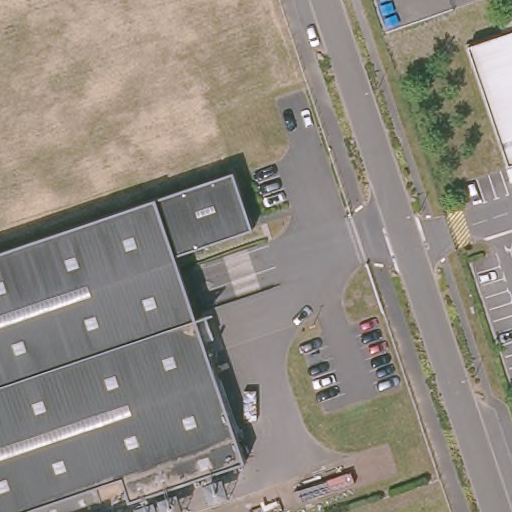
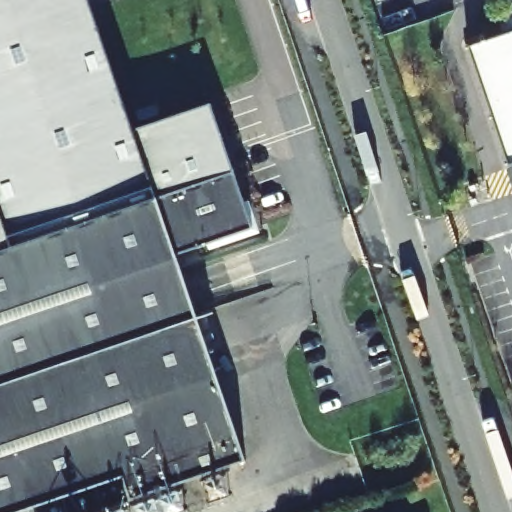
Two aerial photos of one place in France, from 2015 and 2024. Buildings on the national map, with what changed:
new [(134,130),(208,106),(229,169),(0,251),(0,0),(89,0),(134,130)]
unchanged [(508,176),(504,162),(462,39),(500,26),(495,11),(509,7),(512,17),(512,175),(508,176)]
unchanged [(173,254),(245,459),(102,510),(94,487),(23,512),(0,512),(0,251),(229,169),(249,226),(173,254)]
new [(23,512),(94,487),(102,510),(96,512),(23,512)]
unchanged [(181,512),(163,512),(158,497),(178,489),(186,510),(181,512)]
unchanged [(137,512),(134,505),(155,497),(160,512),(137,512)]

